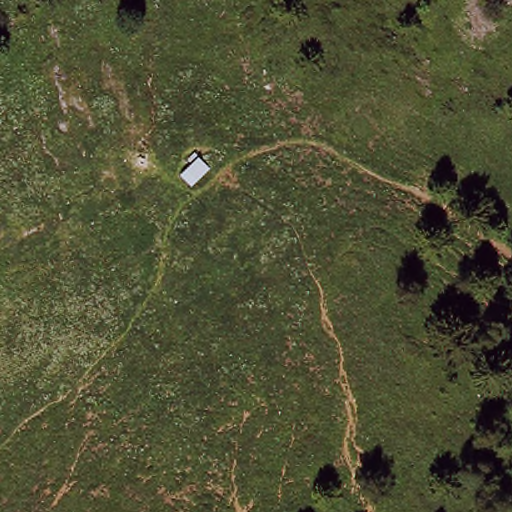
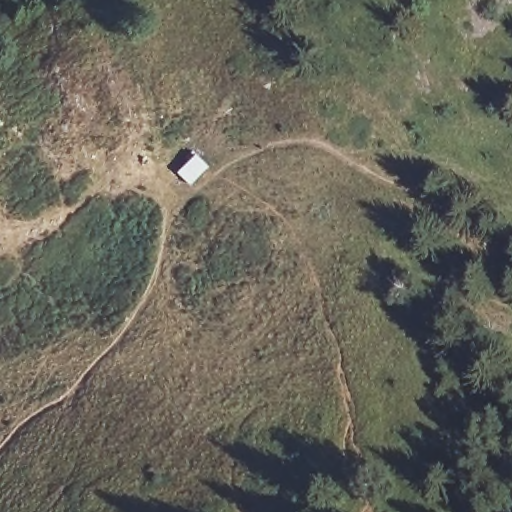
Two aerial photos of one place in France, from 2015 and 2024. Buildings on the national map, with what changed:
unchanged [(213,165),(192,189),(176,176),(198,153),(213,165)]

